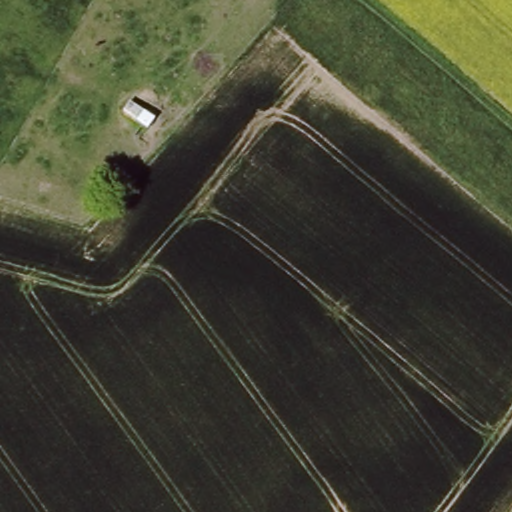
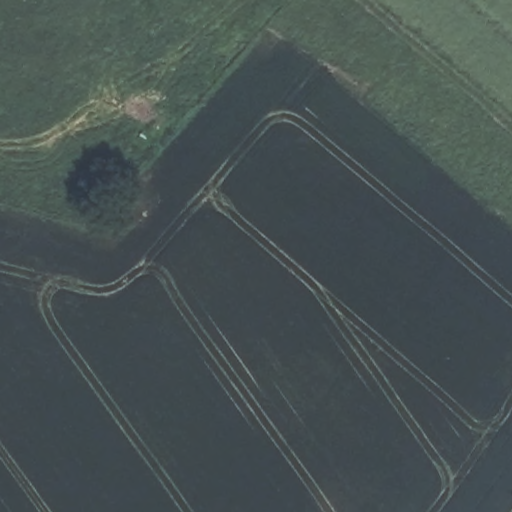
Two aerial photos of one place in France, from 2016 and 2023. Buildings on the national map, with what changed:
unchanged [(151,114),(144,129),(118,116),(128,97),(151,114)]

